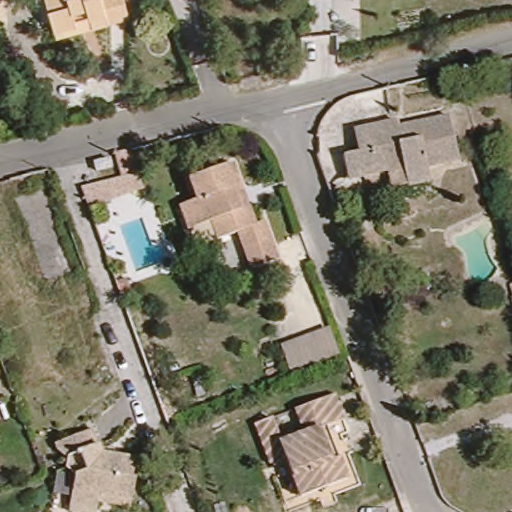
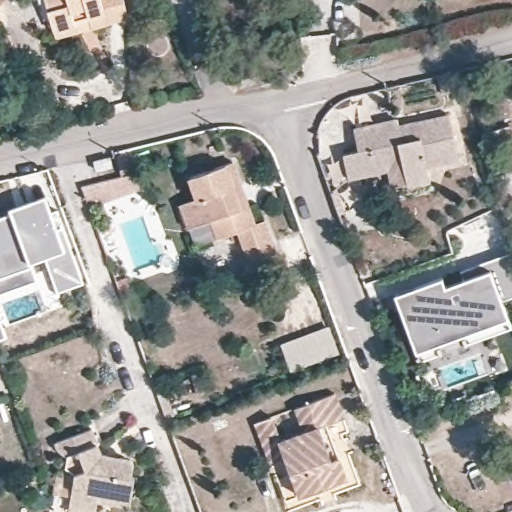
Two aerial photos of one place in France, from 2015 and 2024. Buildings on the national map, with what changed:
unchanged [(125,0),(131,25),(92,33),(55,40),(55,33),(48,0),(125,0)]
unchanged [(347,183),(343,158),(359,155),(354,135),(399,126),(400,129),(451,120),(458,164),(426,169),(429,184),(407,188),(391,190),(388,176),(347,183)]
new [(118,174),(113,151),(130,147),(143,186),(87,207),(79,186),(118,174)]
unchanged [(110,166),(94,170),(93,161),(108,157),(110,166)]
unchanged [(252,267),(246,247),(240,231),(219,237),(213,221),(199,225),(190,228),(181,203),(190,200),(197,197),(190,175),(232,160),(240,182),(248,206),(256,225),(265,221),(278,258),(252,267)]
new [(44,196),(55,228),(61,226),(81,279),(59,288),(47,254),(31,260),(37,277),(0,290),(0,214),(12,208),(44,196)]
new [(419,360),(413,342),(395,294),(442,277),(446,286),(463,279),(460,270),(512,251),(512,297),(503,300),(512,327),(485,337),(464,344),(457,325),(435,334),(442,352),(419,360)]
unchanged [(329,325),(340,355),(290,373),(279,344),(329,325)]
unchanged [(300,502),(285,463),(269,469),(253,428),(269,423),(278,445),(303,436),(294,413),(333,399),(342,424),(326,430),(338,461),(346,484),(300,502)]
unchanged [(79,485),(73,477),(74,468),(66,451),(101,437),(111,463),(139,468),(137,485),(141,486),(138,505),(138,512),(133,512),(105,509),(104,512),(77,512),(79,485)]

